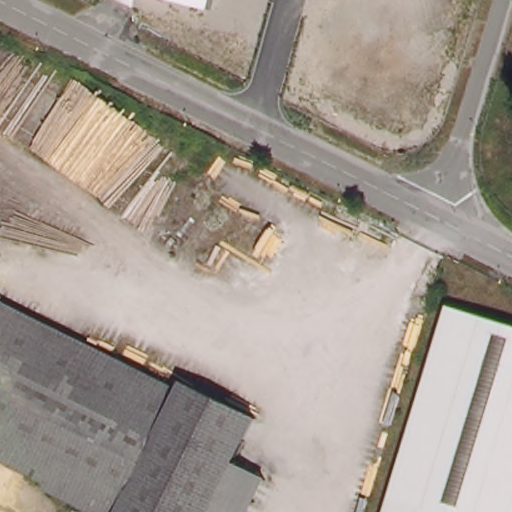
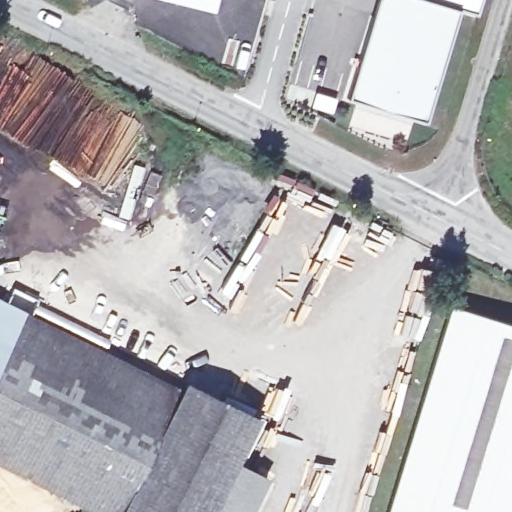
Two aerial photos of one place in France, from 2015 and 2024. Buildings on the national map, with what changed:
unchanged [(168,0),(215,0),(212,11),(168,0)]
new [(428,0),(451,7),(416,120),(338,95),(368,0),(428,0)]
unchanged [(185,375),(258,412),(235,457),(208,512),(110,512),(0,458),(0,296),(180,383),(185,375)]
unchanged [(452,300),(512,320),(512,512),(449,512),(391,494),(452,300)]
unchanged [(235,457),(265,473),(247,512),(208,512),(235,457)]
unchanged [(449,512),(386,512),(391,494),(449,512)]

